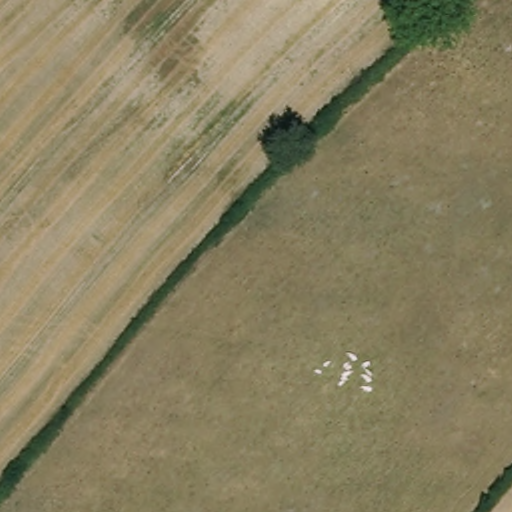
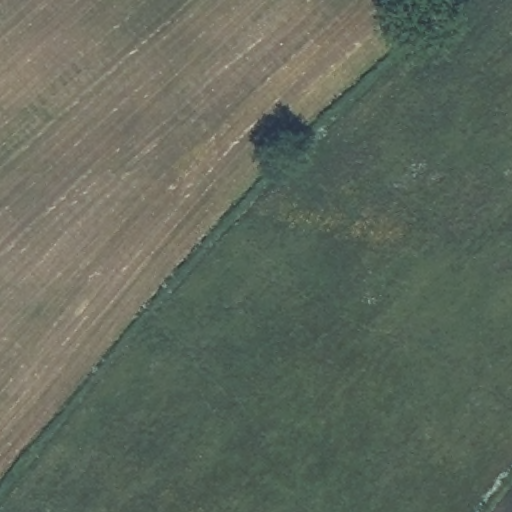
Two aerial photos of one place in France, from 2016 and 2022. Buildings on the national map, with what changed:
[]

